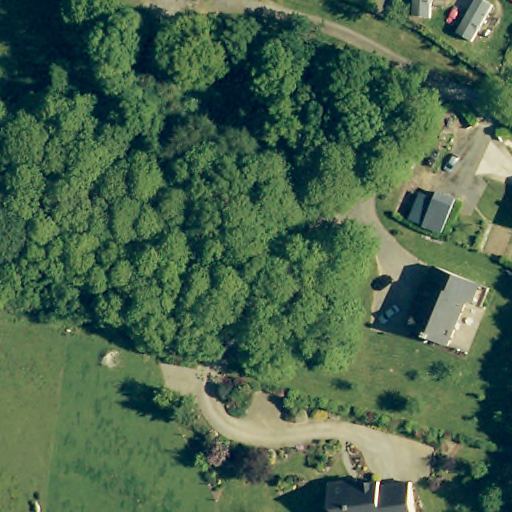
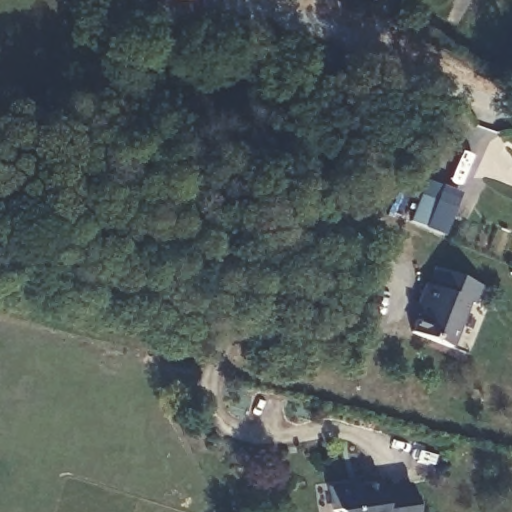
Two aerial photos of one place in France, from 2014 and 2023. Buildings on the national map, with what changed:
unchanged [(433,192),(442,196),(464,206),(454,231),(430,221),(422,217),(433,192)]
unchanged [(475,303),(470,301),(450,346),(413,329),(426,301),(424,300),(422,299),(429,282),(432,282),(432,283),(437,271),(438,269),(439,266),(483,285),(475,303)]
unchanged [(334,483),(357,482),(357,487),(385,485),(386,490),(417,488),(418,512),(340,512),(336,508),(334,483)]

